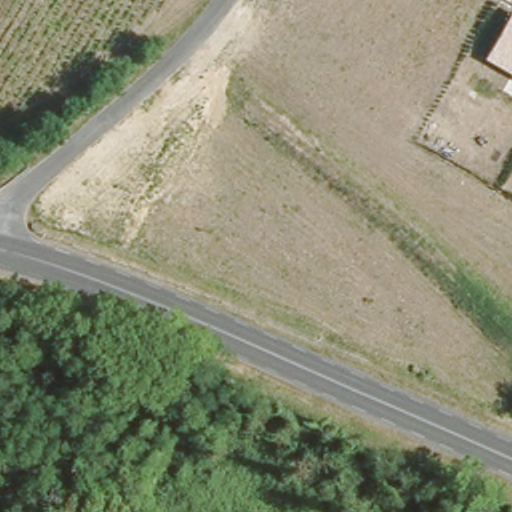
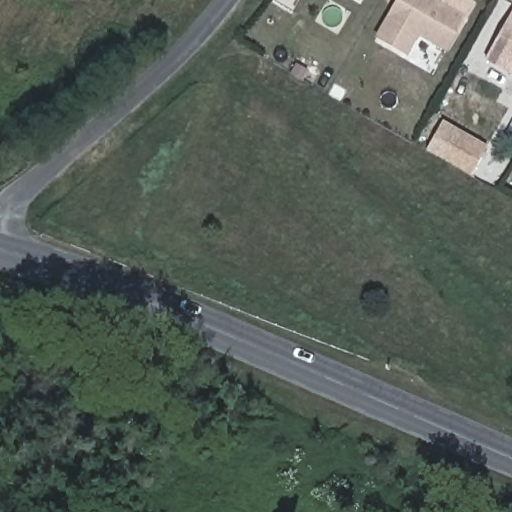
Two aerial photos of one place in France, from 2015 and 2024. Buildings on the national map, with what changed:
new [(446,0),(471,0),(475,2),(449,48),(420,32),(409,53),(379,37),(400,0),(438,0),(444,3),(446,0)]
unchanged [(512,10),(512,76),(484,60),(512,10)]
new [(444,123),(488,148),(473,174),(429,150),(444,123)]

